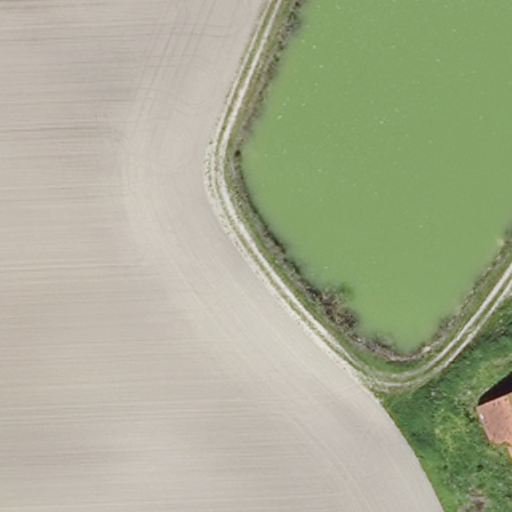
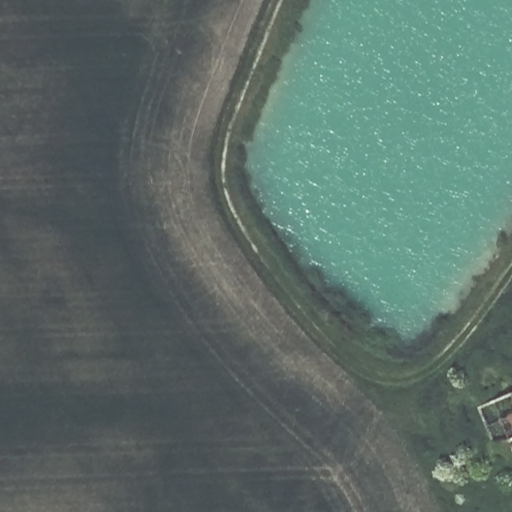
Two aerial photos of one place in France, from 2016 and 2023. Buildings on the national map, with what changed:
unchanged [(492,443),(477,405),(512,391),(512,442),(510,436),(492,443)]

